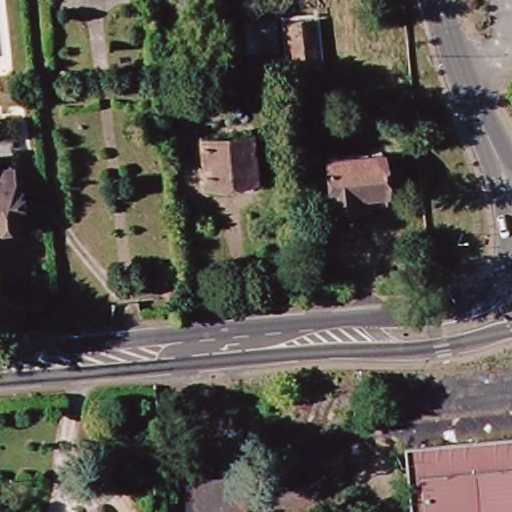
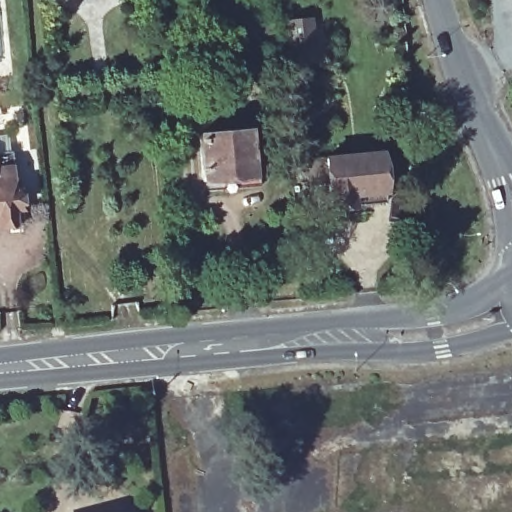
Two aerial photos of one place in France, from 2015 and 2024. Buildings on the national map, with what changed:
unchanged [(319,64),(294,66),(291,27),(313,25),(314,32),(328,31),(330,62),(319,64)]
unchanged [(274,26),(276,55),(245,57),(242,29),(274,26)]
unchanged [(281,80),(252,81),(251,65),(280,62),(281,80)]
unchanged [(250,172),(199,176),(196,134),(247,130),(250,172)]
unchanged [(0,224),(0,149),(5,149),(9,187),(18,187),(19,200),(11,201),(13,222),(0,224)]
unchanged [(372,149),(377,197),(325,202),(321,154),(372,149)]
unchanged [(395,373),(407,376),(404,389),(392,386),(395,373)]
demolished [(512,434),(512,512),(421,512),(416,441),(512,434)]

